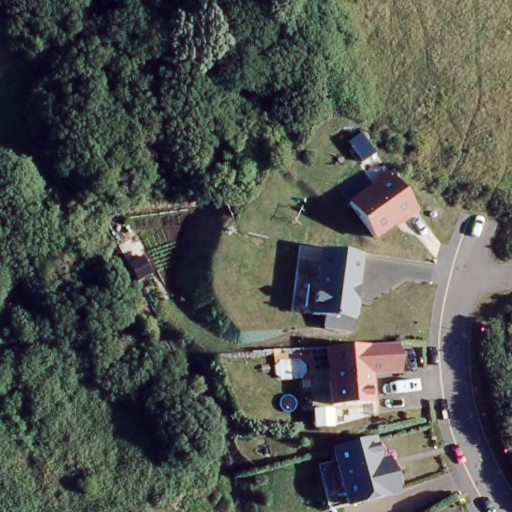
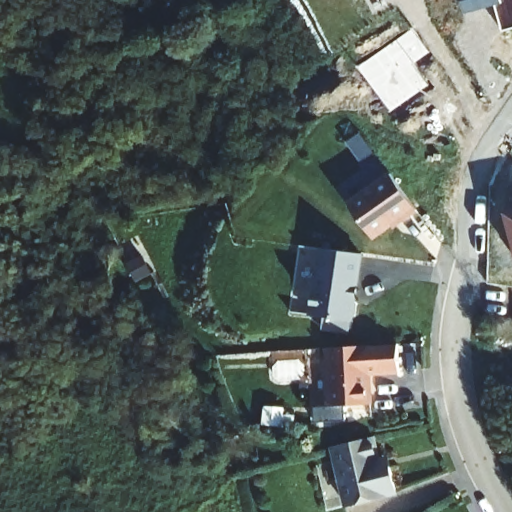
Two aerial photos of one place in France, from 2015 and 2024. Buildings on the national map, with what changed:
new [(503,32),(495,7),(469,14),(465,0),(512,0),(512,30),(503,32)]
new [(429,52),(412,63),(427,85),(390,111),(358,68),(413,30),(429,52)]
unchanged [(417,210),(404,219),(402,217),(373,237),(349,203),(392,173),(417,210)]
new [(506,213),(512,211),(512,234),(506,213)]
unchanged [(360,255),(353,300),(356,303),(353,316),(349,318),(349,321),(311,316),(314,285),(316,285),(321,249),(360,255)]
unchanged [(393,345),(397,344),(399,372),(369,374),(371,404),(331,407),(326,348),(393,345)]
unchanged [(373,437),(381,471),(390,468),(397,493),(347,506),(333,447),(373,437)]

